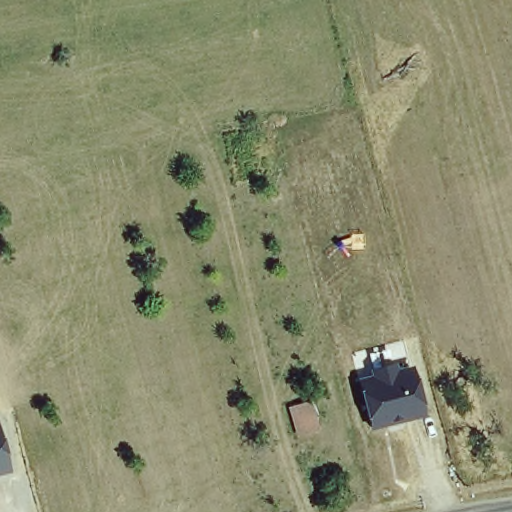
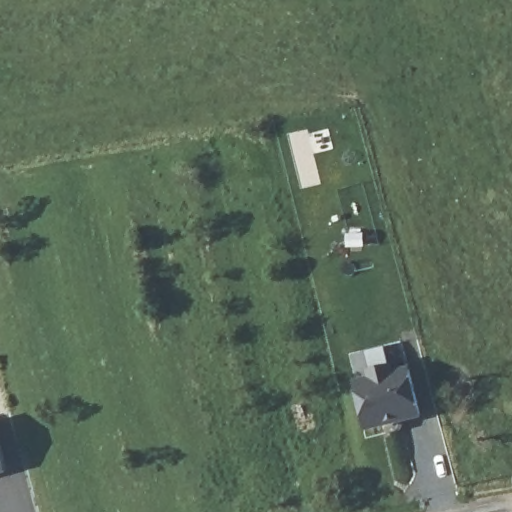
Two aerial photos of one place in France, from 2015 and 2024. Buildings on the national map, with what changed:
unchanged [(367,430),(366,417),(358,389),(355,377),(370,374),(368,368),(396,362),(397,368),(411,365),(415,377),(422,404),(424,417),(367,430)]
unchanged [(316,430),(297,435),(290,407),(310,402),(316,430)]
unchanged [(0,476),(0,455),(5,475),(0,476)]

